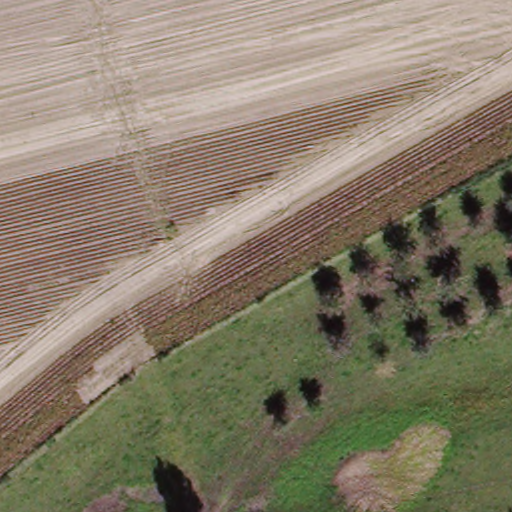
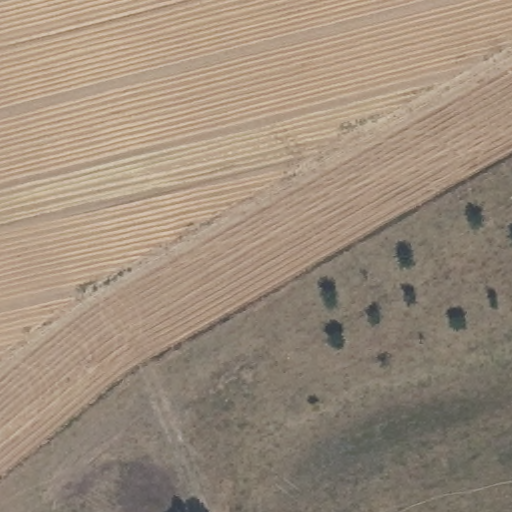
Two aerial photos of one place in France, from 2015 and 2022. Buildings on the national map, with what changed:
[]

